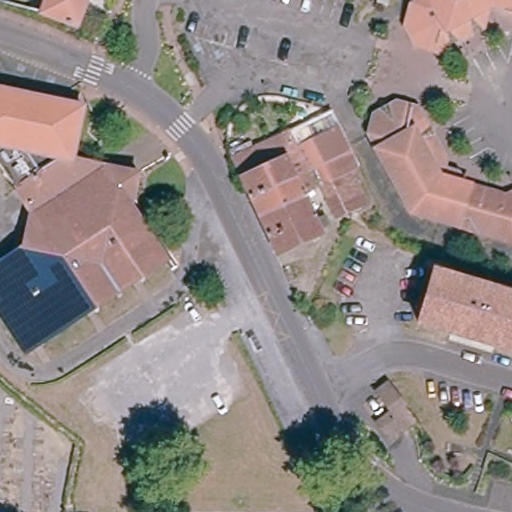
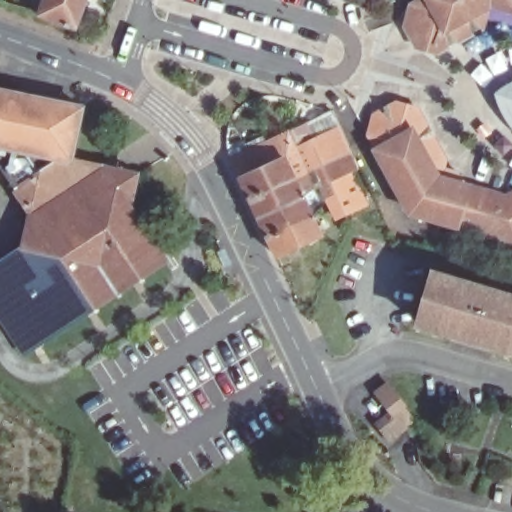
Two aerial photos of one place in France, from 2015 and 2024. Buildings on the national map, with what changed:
unchanged [(87,0),(77,29),(39,15),(45,0),(87,0)]
unchanged [(373,0),(385,0),(383,5),(373,1),(373,0)]
unchanged [(512,0),(512,15),(488,8),(429,40),(412,5),(421,0),(512,0)]
unchanged [(412,5),(429,40),(488,8),(480,30),(437,54),(415,46),(405,26),(408,18),(412,5)]
new [(504,86),(512,82),(512,128),(509,124),(501,110),(495,93),(504,86)]
unchanged [(0,144),(0,89),(86,105),(76,157),(100,163),(96,179),(39,167),(28,150),(0,144)]
unchanged [(402,107),(419,112),(423,114),(460,179),(475,183),(473,190),(442,179),(410,121),(372,138),(378,119),(402,107)]
unchanged [(410,121),(442,179),(473,190),(464,230),(448,226),(415,215),(372,138),(410,121)]
unchanged [(304,127),(310,140),(338,127),(350,150),(250,199),(233,162),(304,127)]
unchanged [(337,218),(329,201),(320,185),(303,194),(258,215),(250,199),(350,150),(358,167),(338,176),(347,192),(355,210),(337,218)]
unchanged [(101,162),(109,162),(141,165),(136,205),(171,258),(100,303),(31,347),(0,299),(0,265),(29,246),(36,210),(20,186),(41,172),(39,167),(96,179),(100,163),(101,162)]
unchanged [(511,245),(464,230),(473,190),(510,201),(512,201),(512,246),(511,245)]
unchanged [(303,194),(314,215),(268,235),(258,215),(303,194)]
unchanged [(314,215),(323,235),(278,256),(268,235),(314,215)]
unchanged [(474,337),(455,331),(423,322),(438,272),(502,293),(512,296),(512,349),(474,337)]
unchanged [(392,440),(380,422),(395,413),(380,395),(390,387),(404,407),(417,424),(392,440)]

